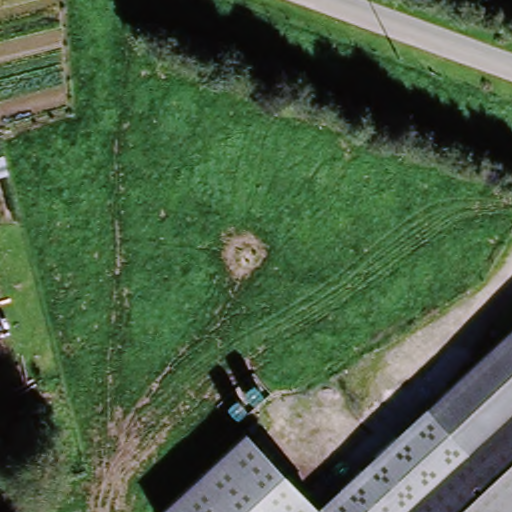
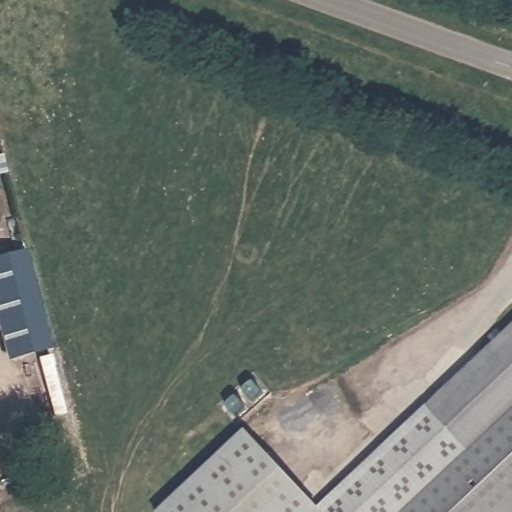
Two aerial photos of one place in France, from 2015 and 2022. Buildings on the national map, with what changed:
unchanged [(2,158),(7,176),(2,177),(0,177),(0,159),(2,158)]
new [(23,255),(50,352),(11,362),(0,321),(0,262),(23,255)]
unchanged [(512,326),(512,512),(160,512),(243,432),(318,508),(512,326)]

